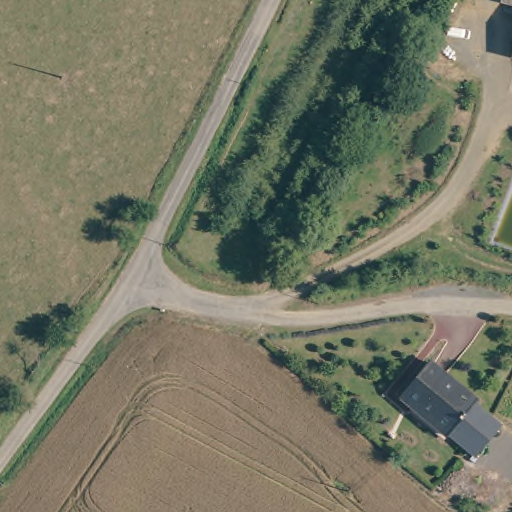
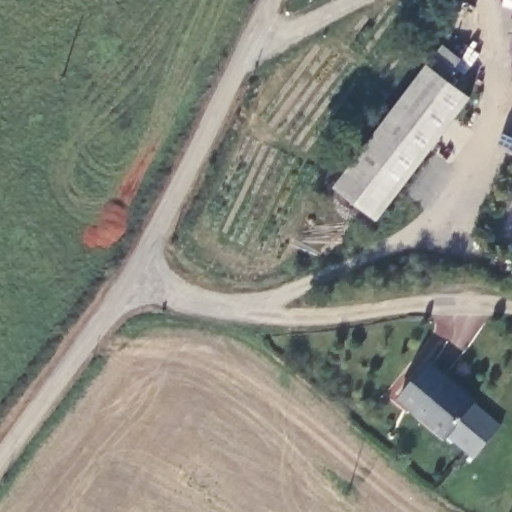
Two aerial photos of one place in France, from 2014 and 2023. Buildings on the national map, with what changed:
unchanged [(502,0),(512,0),(512,8),(501,6),(502,0)]
new [(440,45),(458,59),(443,78),(467,97),(374,219),(332,186),(440,45)]
unchanged [(437,430),(388,392),(416,356),(464,394),(463,396),(438,428),(437,430)]
unchanged [(463,396),(490,418),(466,449),(438,428),(463,396)]

